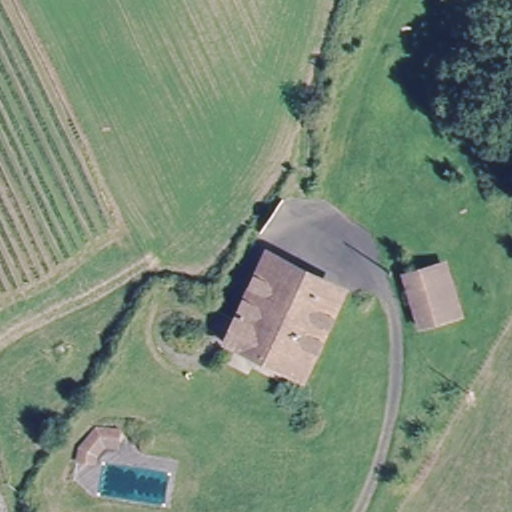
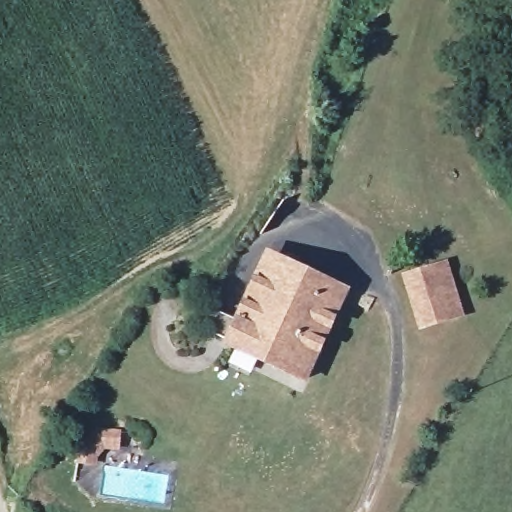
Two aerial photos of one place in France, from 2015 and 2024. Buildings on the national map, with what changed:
unchanged [(274,244),(295,255),(290,265),(339,291),(344,282),(369,295),(351,337),(324,326),(299,374),(225,339),(274,244)]
unchanged [(402,272),(449,260),(465,317),(421,330),(402,272)]

